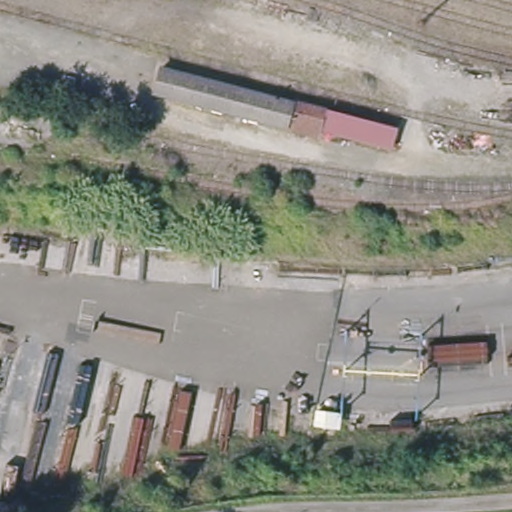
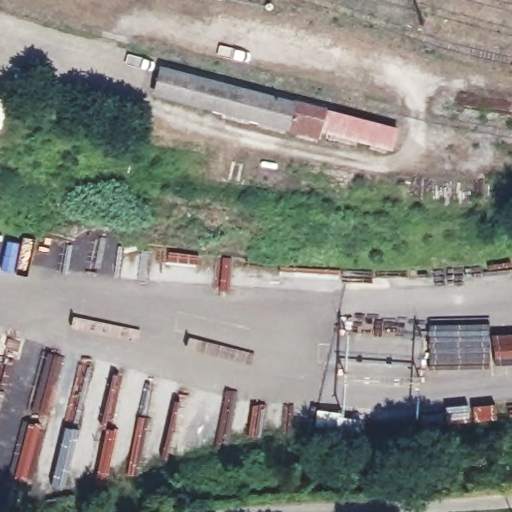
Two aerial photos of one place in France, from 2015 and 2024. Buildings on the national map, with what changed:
unchanged [(319,113),(318,119),(315,130),(314,137),(148,94),(155,67),(319,113)]
unchanged [(321,107),(399,127),(393,150),(315,130),(318,119),(319,113),(321,107)]

